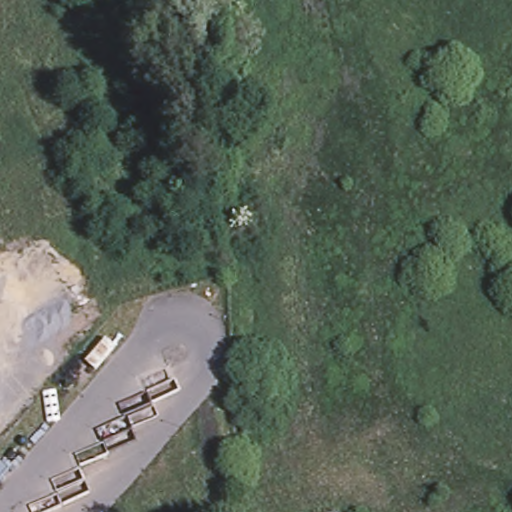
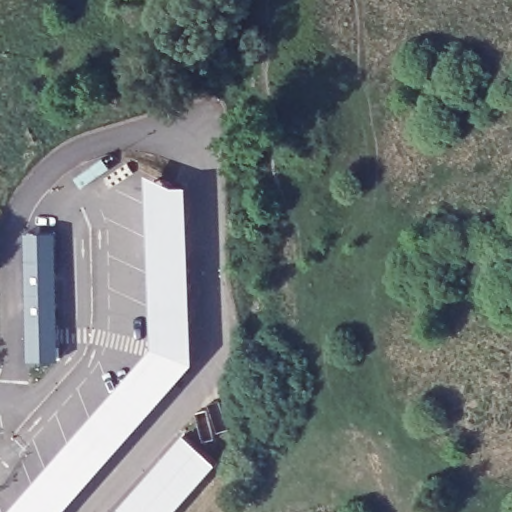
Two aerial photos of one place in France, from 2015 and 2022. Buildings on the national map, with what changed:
new [(153,347),(147,174),(172,187),(188,185),(195,362),(61,512),(8,512),(153,347)]
new [(59,360),(26,360),(25,232),(57,232),(59,360)]
new [(216,462),(172,512),(116,512),(183,434),(216,462)]

